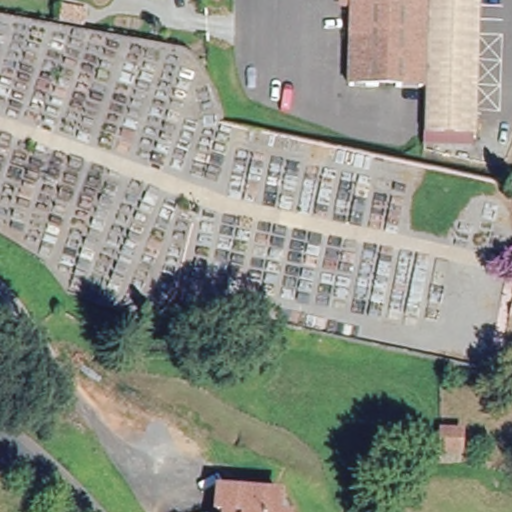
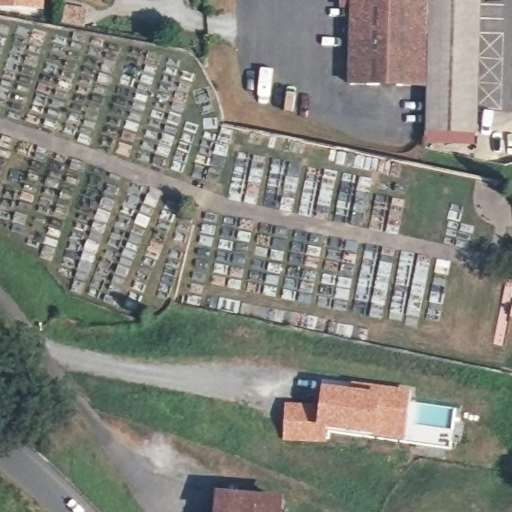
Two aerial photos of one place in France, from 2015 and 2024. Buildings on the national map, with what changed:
new [(44,9),(0,7),(0,0),(44,0),(44,9)]
unchanged [(424,90),(349,88),(352,7),(341,7),(341,0),(427,0),(424,90)]
unchanged [(473,134),(423,133),(424,96),(424,90),(427,0),(477,0),(473,134)]
unchanged [(44,18),(47,5),(73,10),(71,23),(44,18)]
new [(283,402),(317,404),(320,385),(349,388),(350,383),(410,388),(403,439),(326,429),(325,442),(281,439),(283,402)]
unchanged [(434,460),(432,443),(448,441),(451,458),(434,460)]
unchanged [(213,512),(214,494),(274,497),(274,512),(213,512)]

